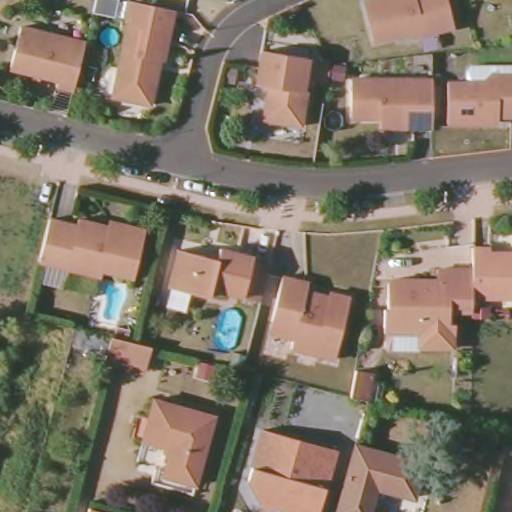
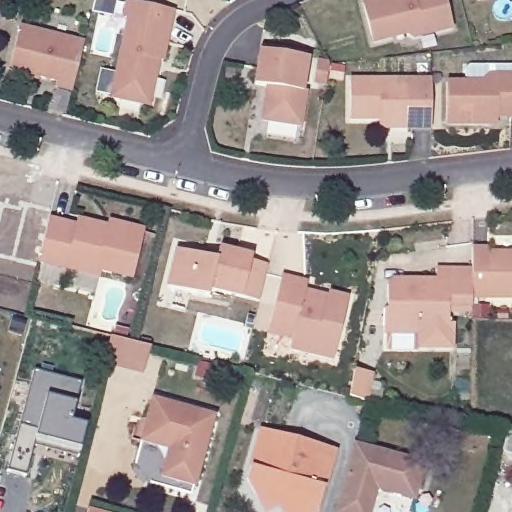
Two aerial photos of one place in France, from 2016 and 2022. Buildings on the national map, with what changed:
unchanged [(455,31),(416,41),(409,32),(376,40),(366,0),(448,0),(455,31)]
unchanged [(173,10),(162,60),(153,58),(151,69),(156,70),(148,104),(110,96),(130,19),(125,17),(129,1),(173,10)]
unchanged [(55,85),(56,79),(8,67),(18,25),(86,41),(84,49),(74,90),(55,85)]
unchanged [(313,62),(308,95),(311,95),(305,130),(267,124),(272,91),(260,89),(265,55),(313,62)]
unchanged [(466,87),(466,75),(470,71),(512,71),(512,122),(497,122),(490,122),(490,130),(447,130),(447,87),(466,87)]
unchanged [(431,127),(398,127),(390,118),(380,118),(350,118),(350,79),(430,78),(431,78),(431,127)]
unchanged [(76,225),(77,218),(100,224),(100,227),(106,229),(108,220),(144,229),(132,277),(101,270),(100,276),(38,261),(48,218),(76,225)]
unchanged [(203,256),(216,258),(219,247),(252,255),(270,258),(265,281),(260,302),(210,290),(208,297),(167,286),(177,249),(203,256)]
unchanged [(495,252),(512,253),(512,299),(475,298),(476,268),(476,258),(476,248),(495,249),(495,252)]
unchanged [(475,308),(453,307),(452,325),(457,325),(456,347),(422,347),(422,333),(387,332),(389,308),(393,309),(392,283),(397,278),(412,278),(412,285),(423,286),(423,279),(441,279),(441,268),(476,268),(475,298),(475,308)]
unchanged [(307,282),(305,293),(311,296),(312,292),(327,295),(328,291),(349,296),(337,360),(292,351),(297,327),(272,323),(284,276),(307,282)]
unchanged [(491,308),(491,318),(475,318),(475,308),(491,308)]
unchanged [(135,346),(150,350),(143,378),(101,367),(110,339),(135,346)]
new [(33,372),(80,383),(75,403),(70,422),(85,427),(80,448),(78,456),(33,445),(27,474),(7,470),(33,372)]
unchanged [(358,373),(376,377),(371,405),(353,400),(358,373)]
unchanged [(220,417),(202,483),(167,474),(175,442),(170,441),(166,443),(145,437),(155,399),(220,417)]
unchanged [(317,512),(282,512),(280,509),(275,512),(264,512),(248,485),(262,434),(334,453),(317,512)]
unchanged [(416,493),(381,484),(373,512),(337,512),(354,450),(422,470),(416,493)]

